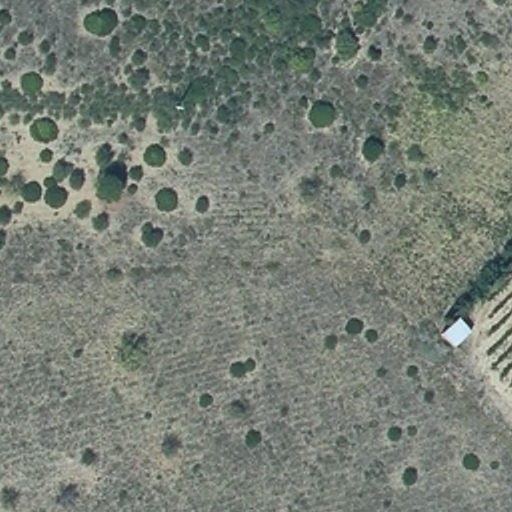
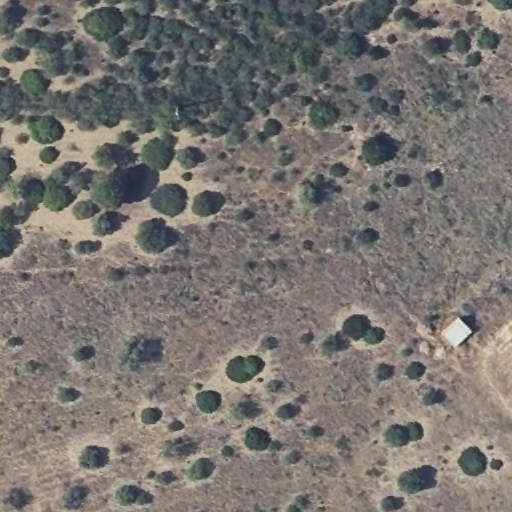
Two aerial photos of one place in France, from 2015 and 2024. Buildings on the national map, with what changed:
unchanged [(458,313),(471,326),(452,342),(440,328),(458,313)]

